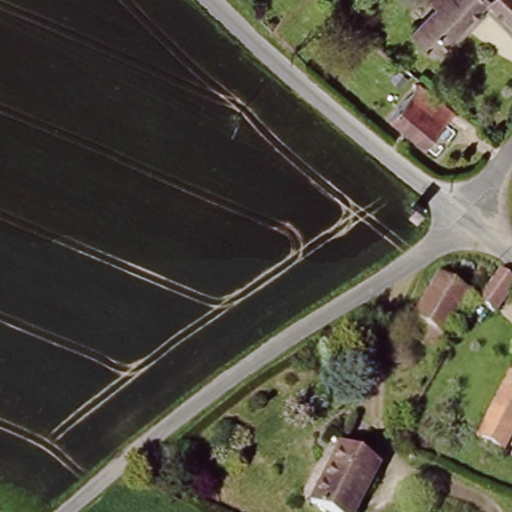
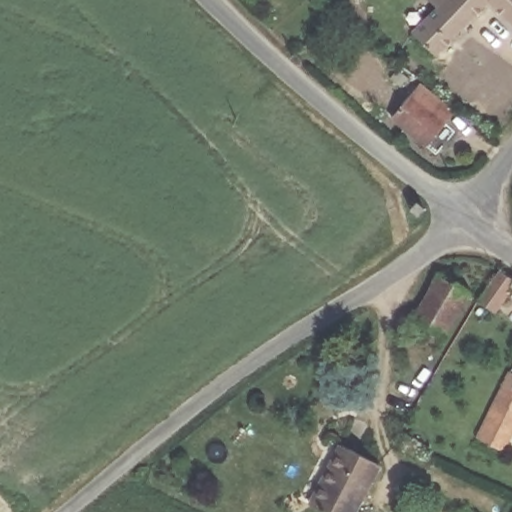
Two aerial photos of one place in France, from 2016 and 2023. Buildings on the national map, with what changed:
unchanged [(488,5),(432,59),(410,37),(436,10),(428,3),(431,0),(512,0),(512,27),(488,5)]
unchanged [(419,85),(454,114),(425,148),(390,119),(419,85)]
unchanged [(495,310),(477,300),(498,265),(512,277),(512,283),(495,310)]
unchanged [(440,273),(470,290),(439,345),(409,330),(440,273)]
unchanged [(502,445),(487,437),(473,431),(482,413),(503,375),(512,379),(512,435),(507,447),(502,445)]
unchanged [(374,458),(347,512),(332,512),(307,499),(337,440),(374,458)]

